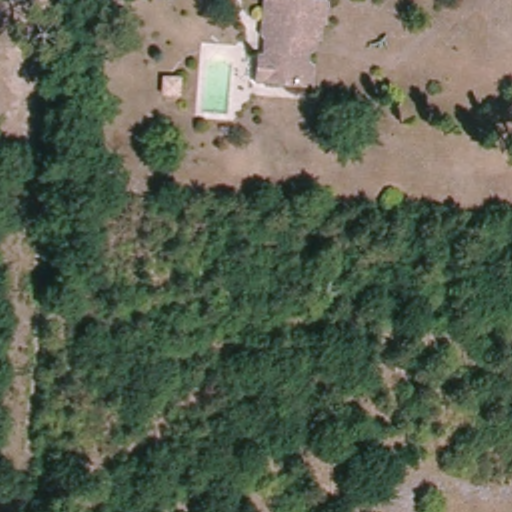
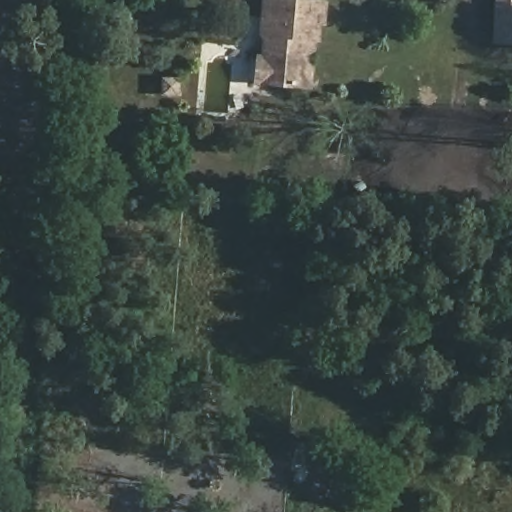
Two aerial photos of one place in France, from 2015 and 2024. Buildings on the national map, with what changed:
unchanged [(314,49),(307,53),(306,63),(313,68),(310,86),(263,83),(266,38),(263,34),(265,0),(296,0),(321,2),(319,22),(318,39),(314,38),(314,49)]
new [(512,44),(493,43),(495,0),(512,0),(512,44)]
unchanged [(164,79),(180,79),(179,95),(164,94),(164,79)]

